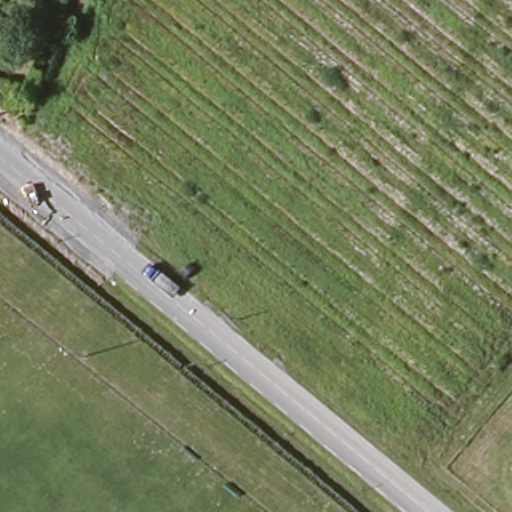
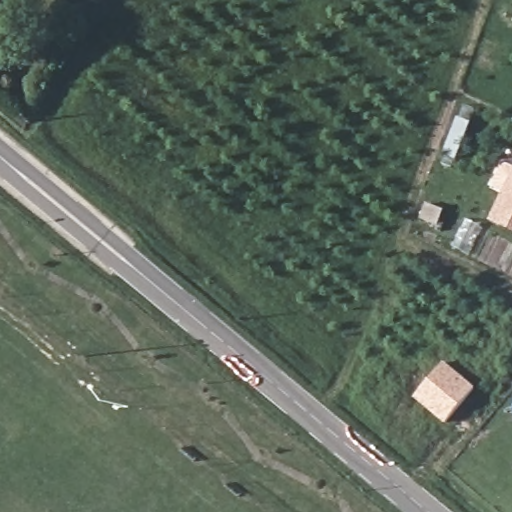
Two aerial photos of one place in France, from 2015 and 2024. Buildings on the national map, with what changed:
unchanged [(0,24),(1,25),(0,27),(0,24)]
new [(487,224),(510,172),(512,172),(512,236),(487,224)]
new [(410,395),(437,361),(471,389),(445,422),(410,395)]

